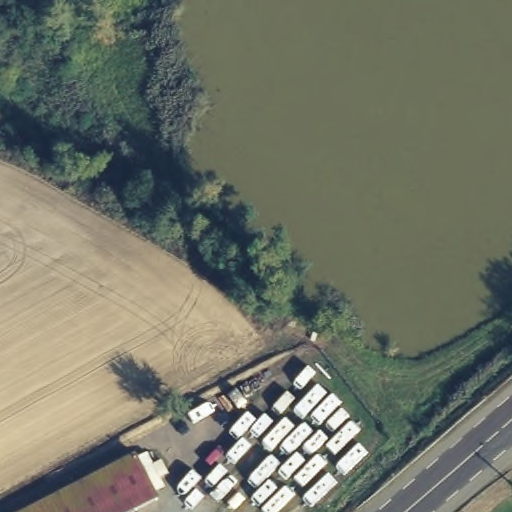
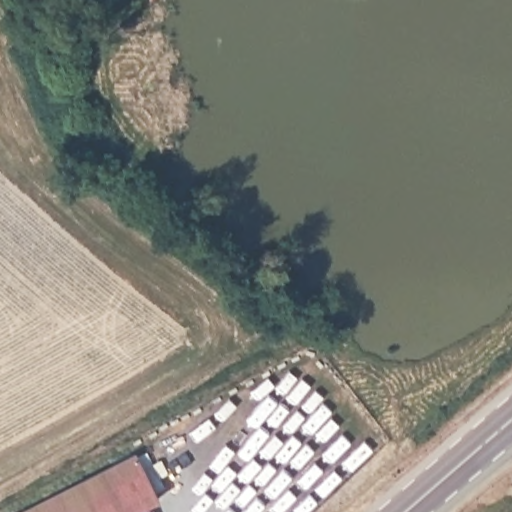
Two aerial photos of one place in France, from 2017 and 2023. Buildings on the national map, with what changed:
unchanged [(134,450),(159,494),(126,512),(17,512),(134,450)]

